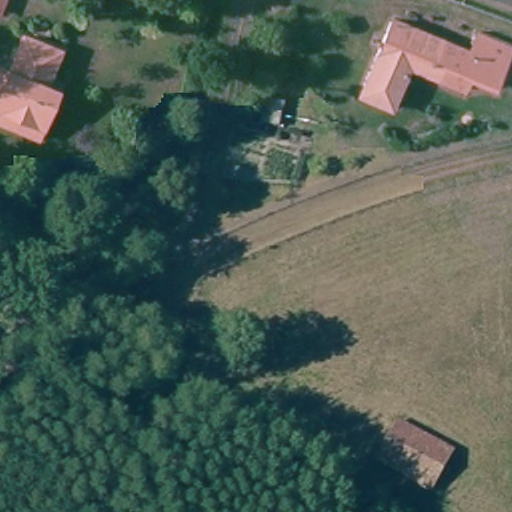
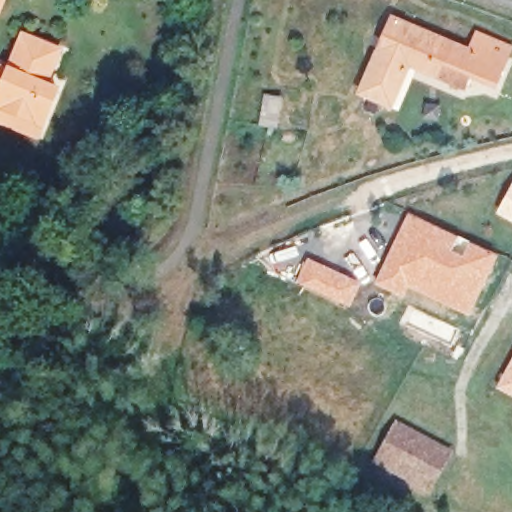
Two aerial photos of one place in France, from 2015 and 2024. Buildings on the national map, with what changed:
unchanged [(0,0),(2,0),(0,4),(0,0)]
unchanged [(412,62),(393,108),(363,94),(392,18),(472,49),(480,30),(512,44),(512,49),(498,84),(470,73),(466,85),(412,62)]
unchanged [(0,68),(9,70),(23,34),(60,50),(43,87),(56,94),(53,103),(43,126),(38,138),(0,121),(0,68)]
new [(512,182),(512,223),(495,213),(512,182)]
new [(408,212),(498,255),(469,317),(407,287),(402,298),(373,284),(408,212)]
new [(306,257),(361,283),(350,308),(294,282),(306,257)]
new [(498,388),(512,362),(512,395),(498,388)]
unchanged [(377,468),(388,426),(438,439),(450,443),(439,488),(427,484),(377,468)]

